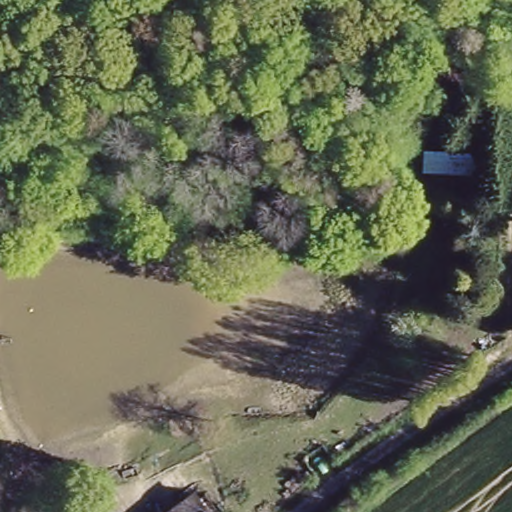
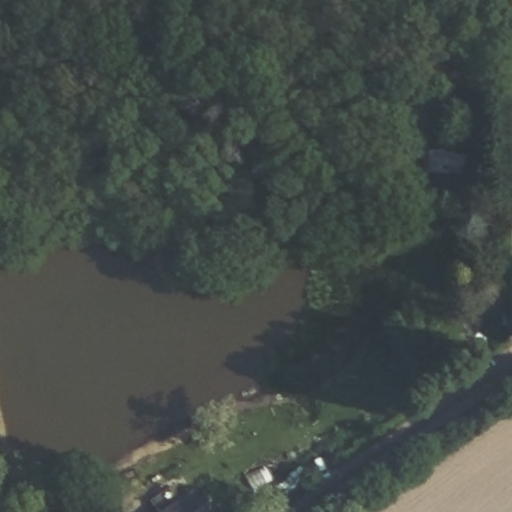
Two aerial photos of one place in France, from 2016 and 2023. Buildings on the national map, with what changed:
unchanged [(487,149),(486,182),(421,182),(416,156),(487,149)]
unchanged [(213,512),(163,512),(195,490),(213,512)]

